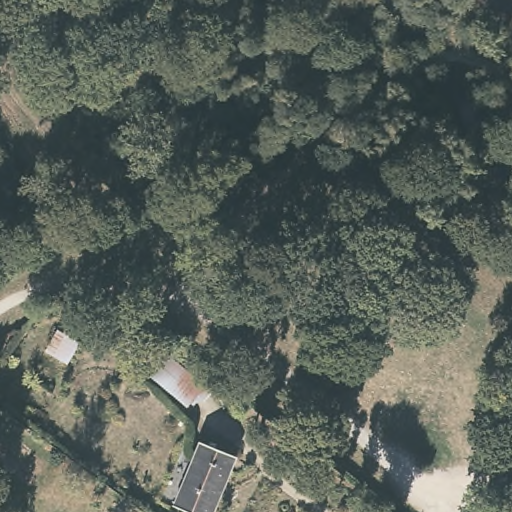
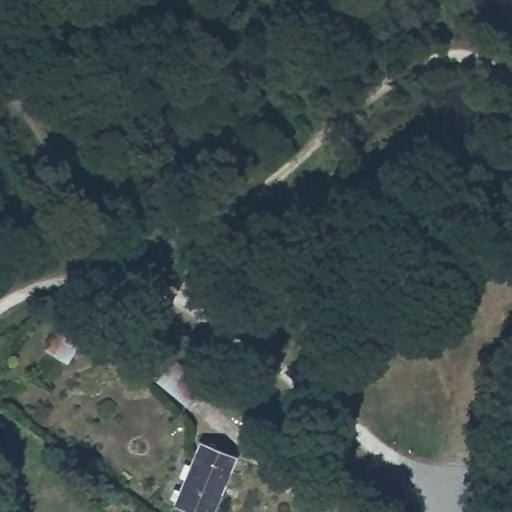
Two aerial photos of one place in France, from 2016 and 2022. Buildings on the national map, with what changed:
unchanged [(216,512),(190,512),(174,505),(202,444),(240,462),(216,512)]

